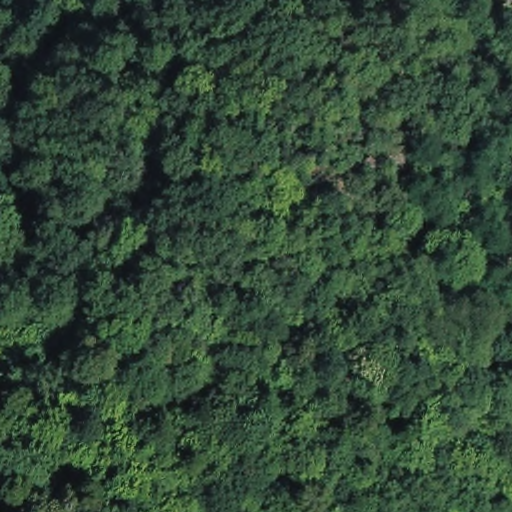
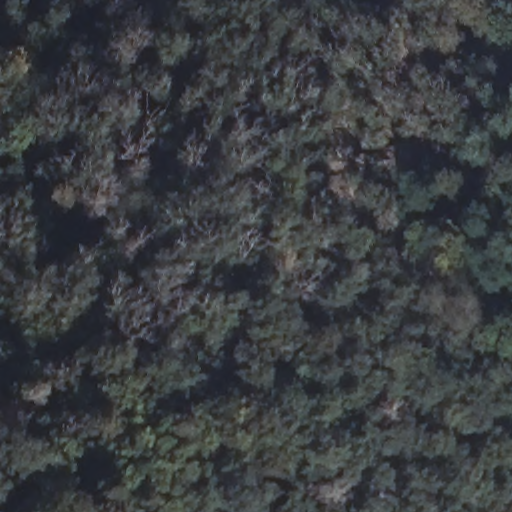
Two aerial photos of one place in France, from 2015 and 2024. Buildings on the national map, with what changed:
unchanged [(505,3),(499,0),(512,0),(512,6),(505,3)]

